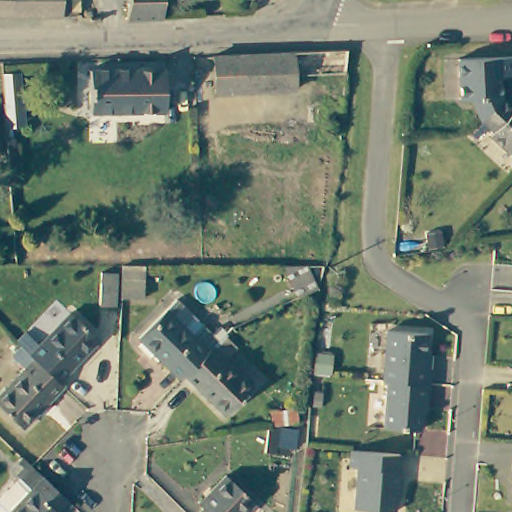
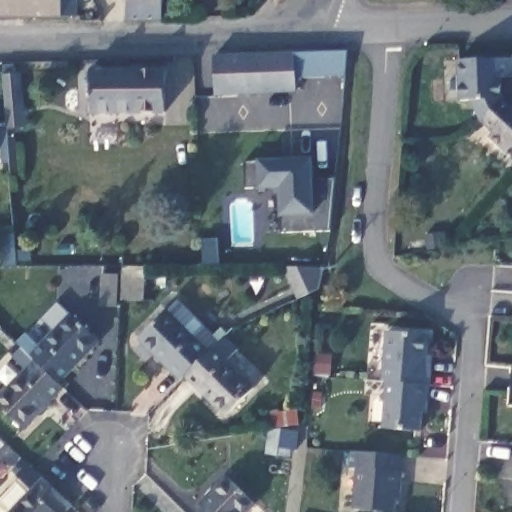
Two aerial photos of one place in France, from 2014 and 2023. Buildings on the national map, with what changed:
unchanged [(0,15),(0,0),(77,0),(76,15),(0,15)]
unchanged [(150,19),(126,20),(126,0),(162,0),(162,19),(150,19)]
unchanged [(512,58),(512,76),(499,76),(500,99),(481,120),(478,123),(466,100),(460,101),(458,61),(470,60),(498,59),(512,58)]
unchanged [(347,60),(345,84),(295,85),(293,62),(347,60)]
unchanged [(295,85),(295,100),(215,104),(214,65),(293,62),(295,85)]
unchanged [(167,117),(91,119),(90,76),(166,74),(167,117)]
unchanged [(512,156),(489,135),(492,130),(481,120),(500,99),(512,109),(512,156)]
new [(313,177),(333,179),(330,229),(282,230),(280,215),(280,189),(260,188),(260,185),(246,186),(245,161),(260,160),(312,157),(313,177)]
unchanged [(316,290),(298,300),(284,266),(299,266),(306,266),(316,290)]
unchanged [(147,271),(145,300),(124,298),(125,270),(147,271)]
unchanged [(101,305),(103,273),(119,274),(117,306),(101,305)]
unchanged [(145,334),(174,308),(204,341),(218,329),(226,338),(194,368),(184,377),(145,334)]
unchanged [(105,345),(64,386),(29,350),(25,347),(24,346),(34,337),(46,350),(79,318),(105,345)]
unchanged [(425,366),(430,367),(428,384),(387,381),(383,380),(387,331),(427,334),(425,366)]
unchanged [(231,335),(240,345),(226,357),(256,390),(232,412),(194,368),(226,338),(231,335)]
unchanged [(64,386),(69,391),(28,432),(0,405),(32,373),(19,360),(29,350),(64,386)]
unchanged [(421,430),(383,427),(387,381),(428,384),(427,400),(423,400),(421,430)]
unchanged [(298,424),(272,426),(271,412),(297,410),(298,424)]
unchanged [(295,450),(277,447),(276,456),(265,455),(268,432),(279,428),(298,430),(295,450)]
unchanged [(399,470),(401,471),(400,487),(398,487),(395,512),(355,508),(358,468),(350,467),(352,450),(400,455),(399,470)]
unchanged [(42,476),(76,511),(76,512),(7,512),(6,511),(37,480),(29,472),(34,467),(42,476)]
unchanged [(195,508),(222,480),(250,507),(246,512),(199,512),(195,508)]

